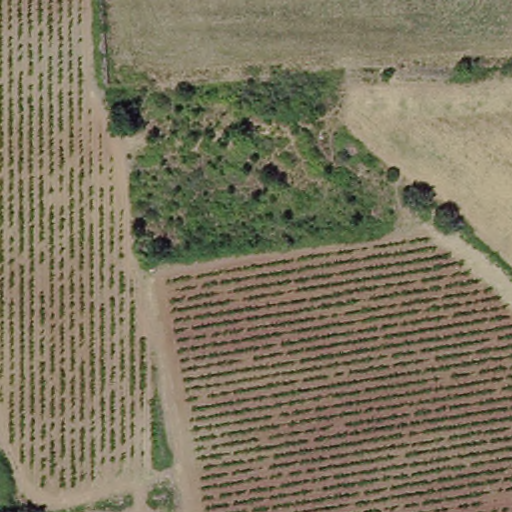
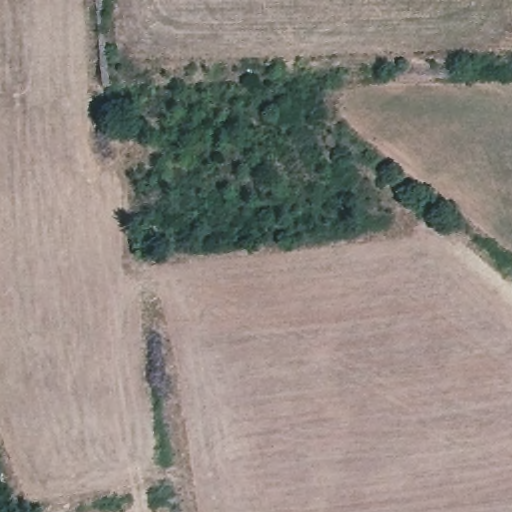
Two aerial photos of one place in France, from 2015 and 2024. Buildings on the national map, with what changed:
[]

